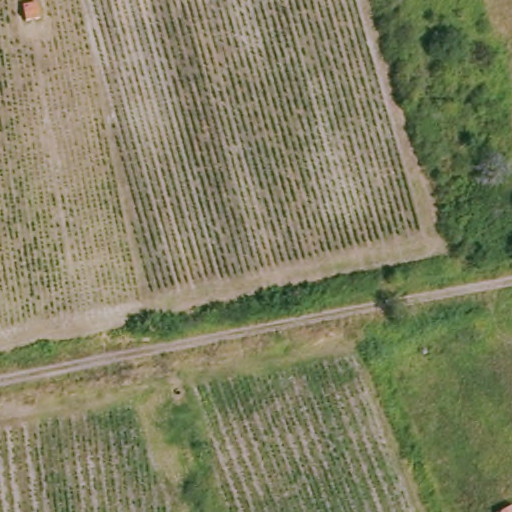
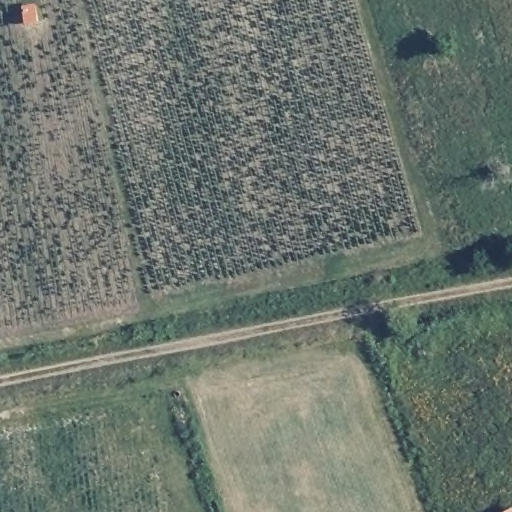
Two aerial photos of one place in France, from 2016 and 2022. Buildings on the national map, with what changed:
unchanged [(23,2),(38,0),(41,23),(28,23),(23,2)]
unchanged [(512,501),(512,512),(493,512),(512,501)]

